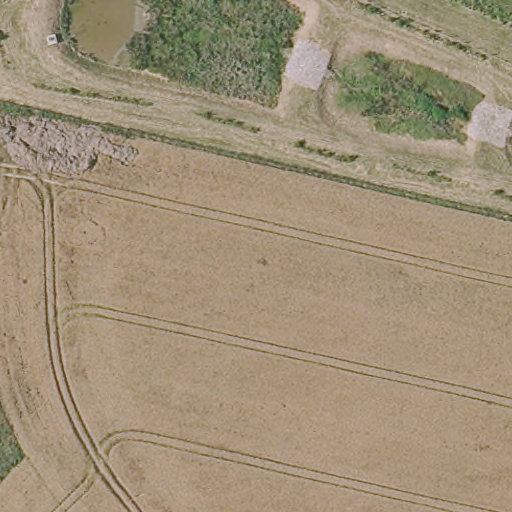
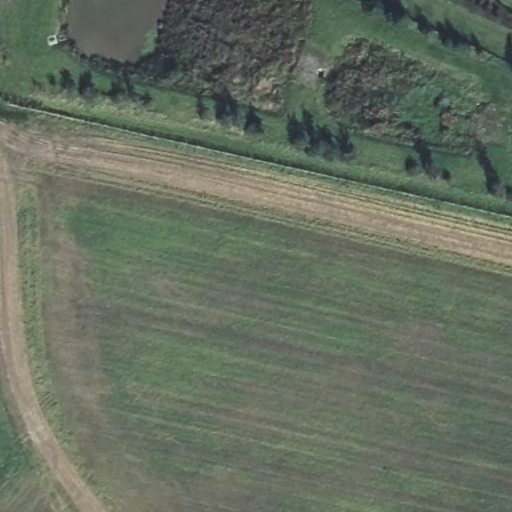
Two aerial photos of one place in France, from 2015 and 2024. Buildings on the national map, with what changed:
[]

